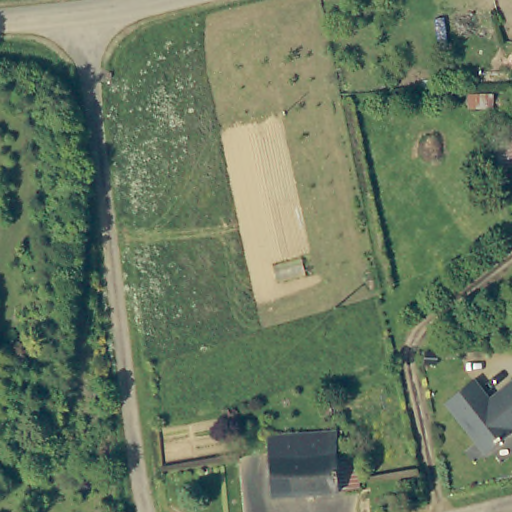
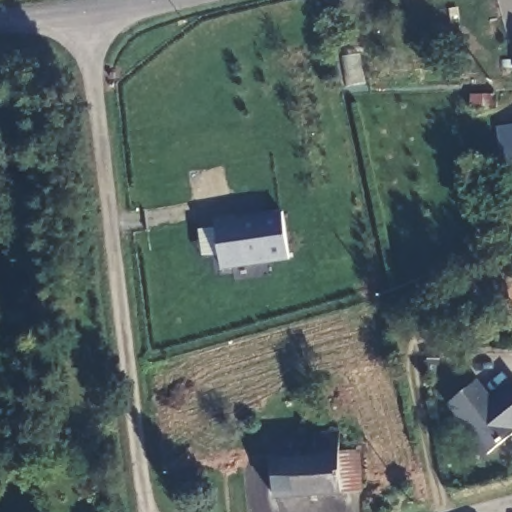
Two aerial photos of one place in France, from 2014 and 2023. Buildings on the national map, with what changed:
unchanged [(501,122),(512,121),(512,161),(505,161),(501,122)]
new [(221,270),(215,216),(232,214),(232,217),(282,210),(288,260),(221,270)]
unchanged [(491,403),(495,400),(501,400),(501,392),(500,390),(512,380),(512,429),(511,429),(484,453),(444,402),(472,379),(491,403)]
unchanged [(354,490),(334,492),(267,497),(261,436),(332,431),(333,453),(353,452),(354,490)]

